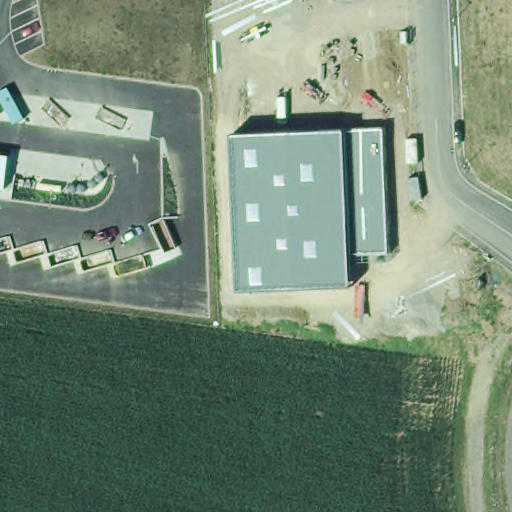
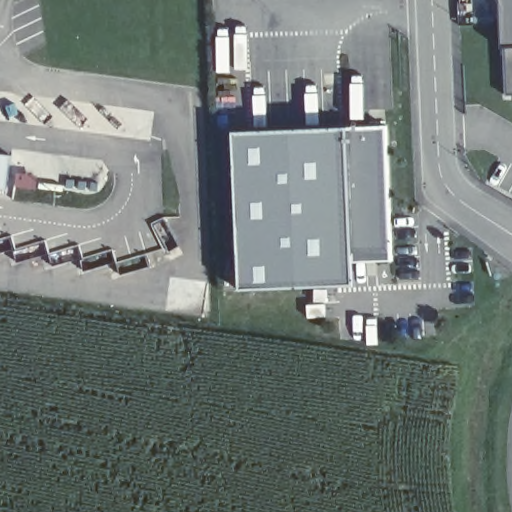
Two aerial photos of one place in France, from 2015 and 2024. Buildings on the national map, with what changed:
new [(503,48),(501,0),(512,0),(512,95),(506,95),(503,48)]
unchanged [(390,252),(352,252),(354,285),(241,290),(233,132),(387,126),(390,252)]
unchanged [(7,190),(0,189),(0,153),(11,155),(7,190)]

